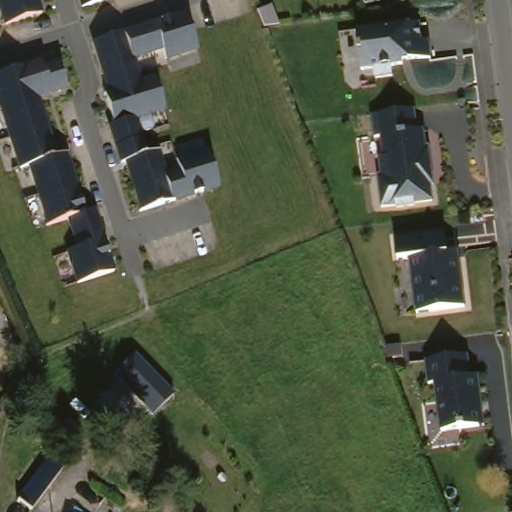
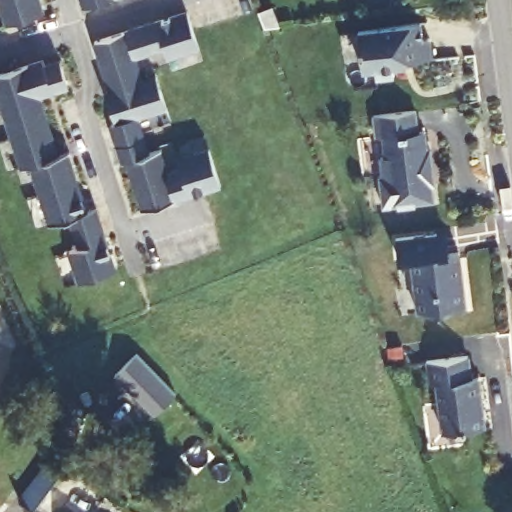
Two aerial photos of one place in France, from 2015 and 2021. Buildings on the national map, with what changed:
unchanged [(3,22),(0,7),(0,0),(44,0),(45,10),(3,22)]
unchanged [(81,9),(79,0),(109,0),(81,9)]
unchanged [(199,56),(162,67),(160,57),(137,66),(143,81),(157,80),(164,113),(140,119),(147,148),(159,150),(161,161),(210,150),(220,190),(135,212),(124,164),(119,162),(101,93),(107,90),(95,45),(185,12),(199,56)]
unchanged [(428,60),(353,69),(348,33),(416,23),(428,60)]
unchanged [(58,61),(70,93),(42,103),(60,160),(70,158),(83,213),(101,212),(114,277),(74,284),(58,224),(42,225),(28,168),(15,170),(0,114),(0,74),(58,61)]
unchanged [(434,197),(384,203),(375,116),(416,109),(434,197)]
unchanged [(465,306),(417,313),(412,263),(398,264),(398,237),(447,232),(465,306)]
unchanged [(116,372),(137,353),(175,393),(153,413),(116,372)]
unchanged [(471,356),(474,377),(481,378),(485,432),(435,439),(429,360),(471,356)]
unchanged [(49,458),(63,469),(32,510),(18,500),(49,458)]

